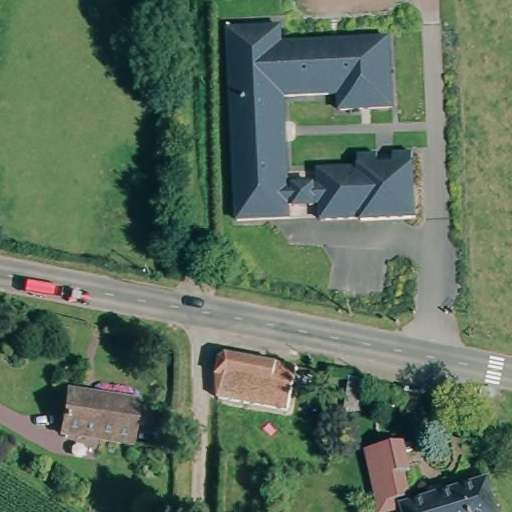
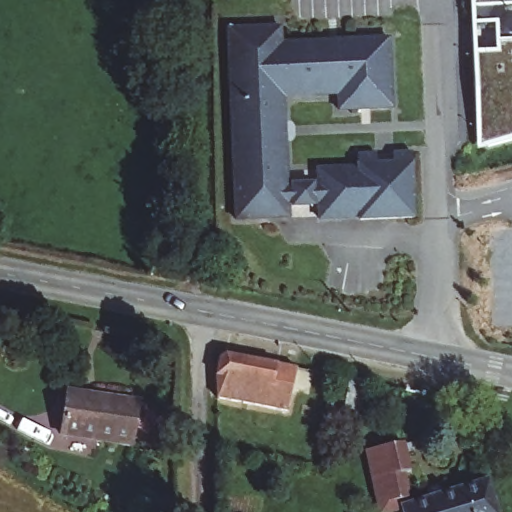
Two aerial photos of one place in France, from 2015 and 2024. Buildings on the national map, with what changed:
new [(476,104),(475,82),(474,55),(497,53),(497,44),(495,23),(472,24),(470,5),(470,0),(512,0),(512,138),(479,147),(476,104)]
unchanged [(281,28),(281,40),(389,38),(392,111),(339,112),(339,96),(284,97),(287,187),(292,187),(292,185),(312,185),(312,187),(318,187),(317,171),(358,170),(357,157),(377,157),(376,167),(392,168),(392,157),(412,157),(413,221),(360,222),(360,220),(319,220),(319,204),(314,204),(314,206),(292,206),(292,205),(288,204),(288,218),(235,218),(229,29),(281,28)]
unchanged [(222,402),(216,380),(215,366),(223,356),(296,369),(295,412),(222,402)]
unchanged [(373,413),(356,412),(357,384),(375,388),(373,413)]
unchanged [(62,432),(66,398),(132,406),(128,441),(62,432)]
unchanged [(413,490),(404,492),(395,493),(379,496),(375,434),(414,432),(416,462),(410,463),(413,490)]
unchanged [(489,483),(496,512),(407,512),(405,497),(489,483)]

